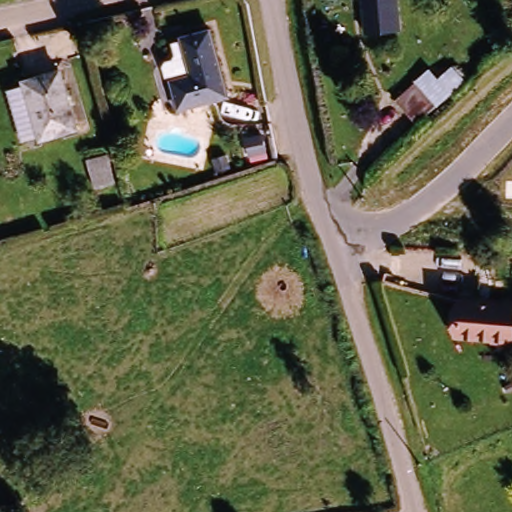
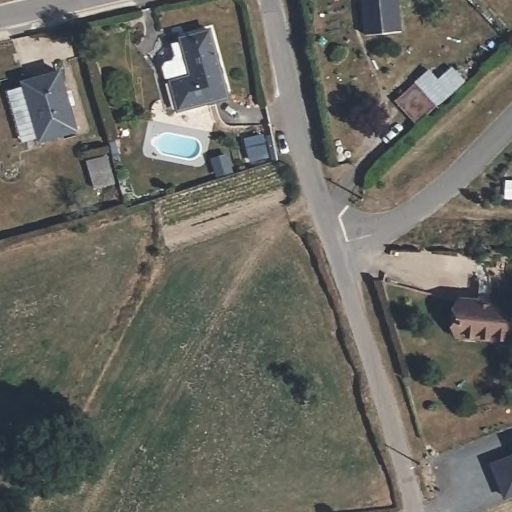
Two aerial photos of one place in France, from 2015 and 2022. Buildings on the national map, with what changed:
unchanged [(366,34),(363,0),(397,0),(400,31),(366,34)]
unchanged [(181,111),(180,105),(172,75),(167,72),(164,61),(167,56),(174,54),(177,50),(174,38),(183,36),(182,32),(211,25),(230,92),(201,100),(202,106),(181,111)]
unchanged [(18,124),(9,90),(25,86),(25,82),(61,72),(77,130),(41,140),(40,136),(23,140),(18,124)]
unchanged [(437,105),(416,124),(395,100),(415,82),(437,105)]
unchanged [(499,304),(500,300),(512,301),(512,341),(456,336),(460,300),(499,304)]
new [(505,499),(490,462),(512,452),(512,496),(505,499)]

